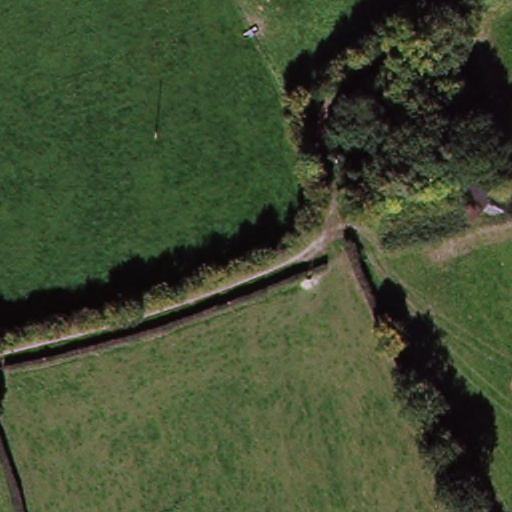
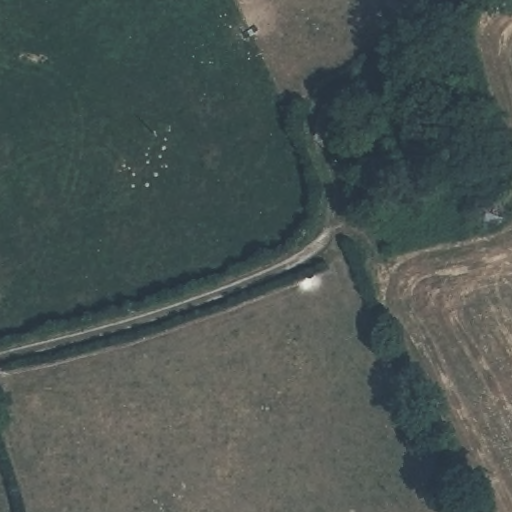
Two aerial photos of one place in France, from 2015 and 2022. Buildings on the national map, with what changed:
unchanged [(455,171),(380,189),(375,164),(449,146),(455,171)]
unchanged [(502,216),(478,222),(465,174),(488,167),(502,216)]

